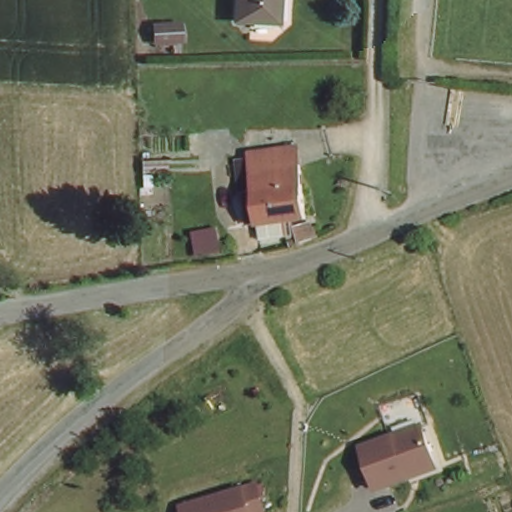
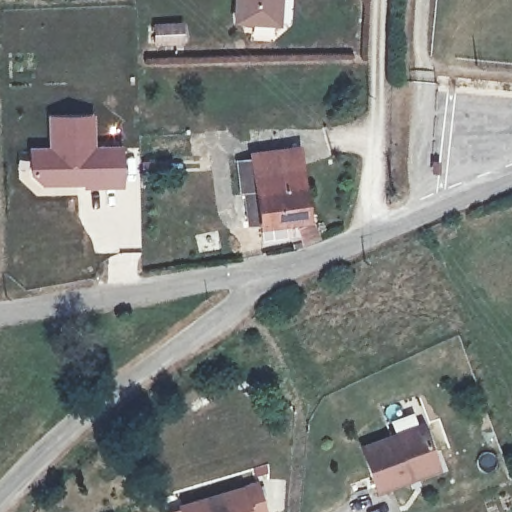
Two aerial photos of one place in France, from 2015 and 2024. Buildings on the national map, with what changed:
unchanged [(234,26),(236,0),(275,0),(274,31),(234,26)]
unchanged [(160,29),(168,29),(193,29),(193,51),(167,51),(161,51),(160,29)]
new [(49,151),(47,117),(93,117),(94,149),(123,148),(121,192),(82,193),(83,189),(44,191),(26,175),(23,151),(49,151)]
unchanged [(241,191),(236,191),(236,158),(254,159),(254,148),(303,147),(303,222),(241,226),(241,191)]
unchanged [(438,468),(374,490),(358,441),(419,419),(438,468)]
unchanged [(255,483),(264,512),(181,512),(179,506),(255,483)]

